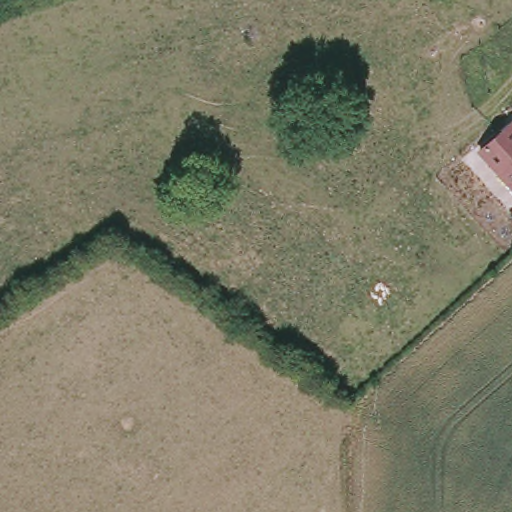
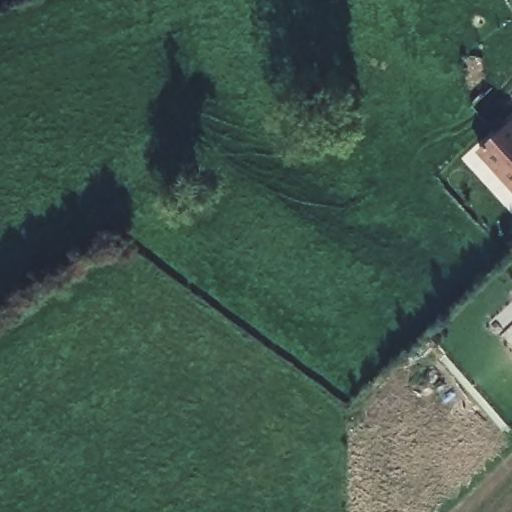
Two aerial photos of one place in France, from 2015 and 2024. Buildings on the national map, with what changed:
unchanged [(512,183),(484,151),(512,126),(512,183)]

